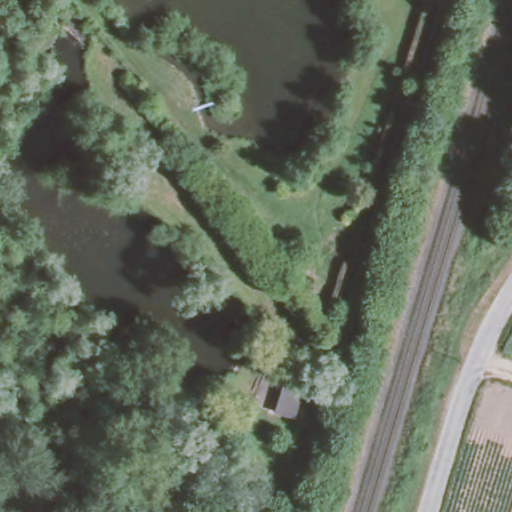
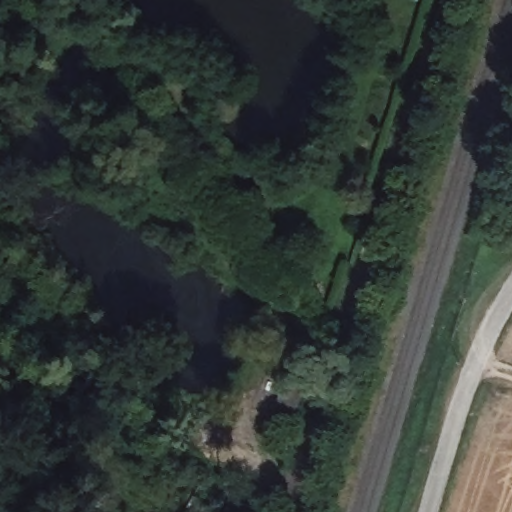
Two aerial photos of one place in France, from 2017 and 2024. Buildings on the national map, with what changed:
unchanged [(269,409),(280,370),(299,375),(289,413),(269,409)]

